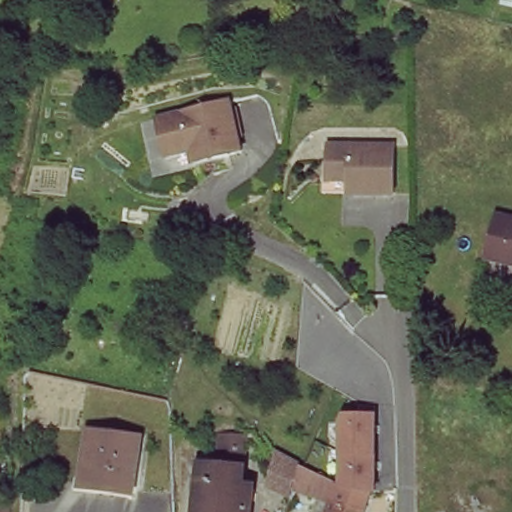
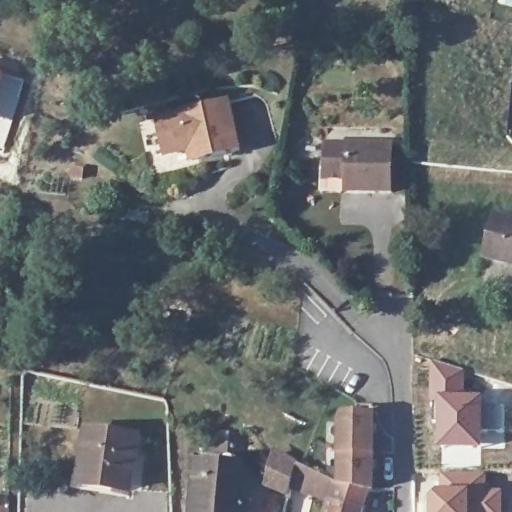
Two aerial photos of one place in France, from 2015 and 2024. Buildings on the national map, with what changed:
new [(0,80),(0,71),(3,72),(0,80)]
new [(24,78),(3,153),(0,153),(0,80),(3,72),(24,78)]
unchanged [(187,150),(164,156),(153,117),(224,99),(237,150),(197,161),(190,162),(187,150)]
unchanged [(323,153),(328,153),(328,136),(392,137),(392,184),(349,184),(323,184),(323,153)]
unchanged [(512,216),(512,263),(486,257),(490,240),(497,212),(512,216)]
unchanged [(40,287),(42,278),(51,279),(49,288),(40,287)]
unchanged [(168,308),(168,318),(149,316),(150,306),(168,308)]
new [(465,369),(465,395),(436,396),(437,418),(431,418),(429,361),(465,369)]
unchanged [(105,386),(103,396),(88,394),(90,383),(105,386)]
new [(465,395),(484,395),(482,455),(473,455),(473,453),(439,453),(437,418),(436,396),(465,395)]
unchanged [(80,476),(86,428),(138,433),(131,490),(79,484),(80,476)]
unchanged [(244,433),(243,450),(216,449),(216,432),(244,433)]
unchanged [(327,511),(324,510),(309,505),(289,498),(291,491),(269,485),(276,454),(298,464),(305,466),(319,473),(338,482),(341,470),(370,481),(369,487),(361,512),(327,512),(327,511)]
unchanged [(248,483),(247,512),(195,512),(198,461),(236,464),(234,482),(248,483)]
new [(438,471),(485,470),(487,488),(502,488),(502,512),(431,512),(430,494),(439,492),(439,490),(438,471)]

